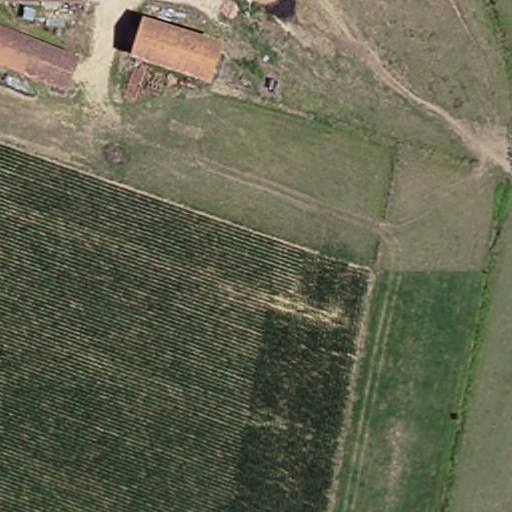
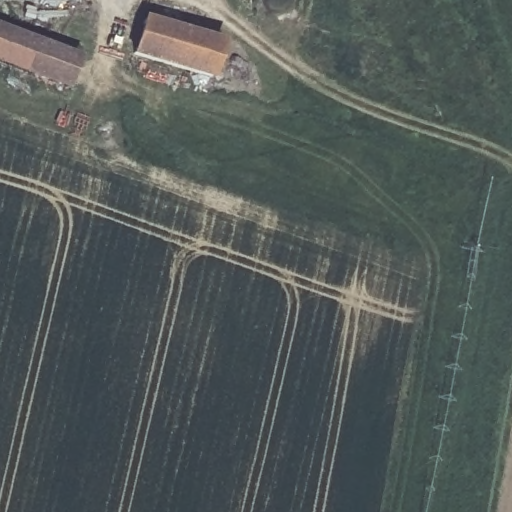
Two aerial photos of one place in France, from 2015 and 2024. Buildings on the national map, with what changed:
unchanged [(74,4),(0,2),(0,0),(74,0),(74,4)]
unchanged [(213,42),(205,75),(128,56),(135,24),(213,42)]
unchanged [(59,94),(0,69),(0,28),(75,62),(59,94)]

